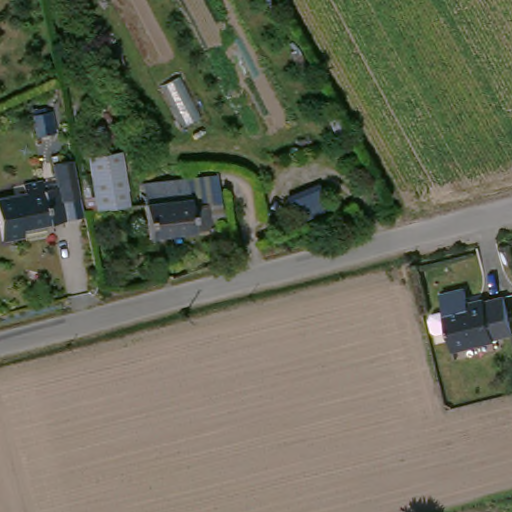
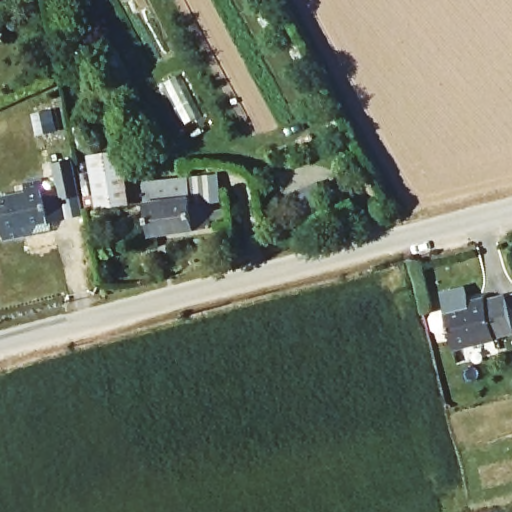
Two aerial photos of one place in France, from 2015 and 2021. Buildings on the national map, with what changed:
unchanged [(89,153),(123,149),(131,206),(96,211),(89,153)]
unchanged [(29,246),(27,239),(0,245),(0,198),(21,193),(20,185),(41,181),(42,190),(56,186),(51,164),(67,160),(72,185),(76,202),(61,206),(66,225),(46,230),(48,241),(29,246)]
unchanged [(140,205),(139,185),(182,180),(185,198),(207,194),(207,196),(215,195),(219,219),(210,220),(210,228),(145,238),(140,205)]
unchanged [(318,187),(328,212),(295,227),(285,201),(318,187)]
unchanged [(440,336),(435,333),(432,321),(435,316),(445,313),(445,311),(483,298),(484,300),(503,295),(512,330),(512,332),(456,350),(450,333),(440,336)]

